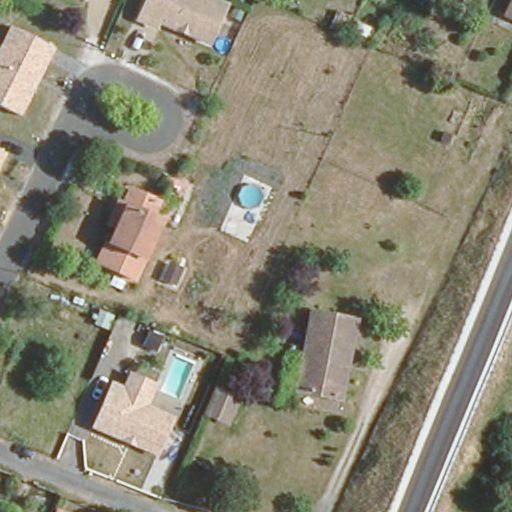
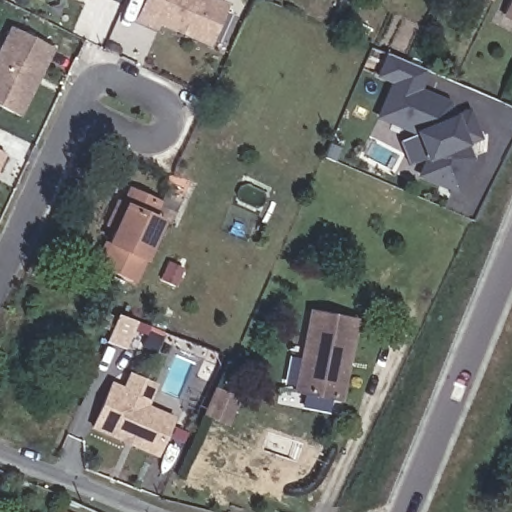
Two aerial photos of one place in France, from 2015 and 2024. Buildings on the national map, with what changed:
unchanged [(156,16),(155,19),(139,12),(144,0),(216,0),(226,5),(211,38),(156,16)]
unchanged [(512,0),(512,17),(500,12),(506,0),(512,0)]
unchanged [(0,45),(10,27),(55,49),(20,117),(0,106),(0,45)]
new [(422,160),(408,164),(398,141),(413,134),(375,118),(390,82),(375,76),(385,53),(427,72),(421,88),(450,100),(456,114),(467,107),(481,138),(467,144),(468,146),(467,147),(472,159),(457,192),(416,177),(422,160)]
unchanged [(0,150),(6,154),(0,167),(0,150)]
unchanged [(161,199),(155,215),(166,219),(140,282),(103,267),(119,231),(109,227),(119,204),(122,205),(130,187),(161,199)]
unchanged [(299,391),(300,386),(298,385),(312,312),(358,321),(343,398),(299,391)]
unchanged [(120,390),(125,375),(151,385),(142,407),(171,417),(169,424),(156,456),(135,447),(132,442),(126,439),(120,442),(90,430),(107,385),(120,390)]
unchanged [(202,411),(213,386),(229,393),(239,397),(229,422),(218,417),(202,411)]

